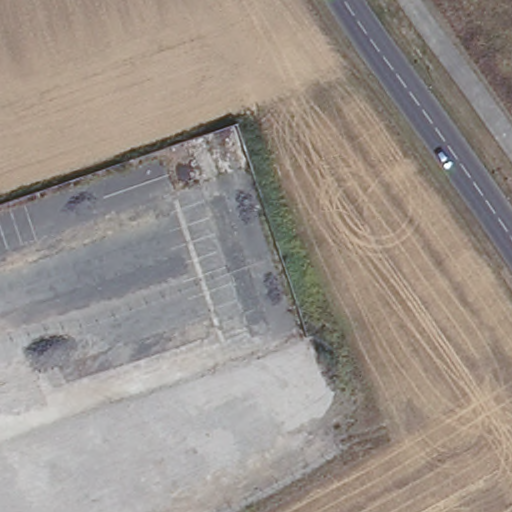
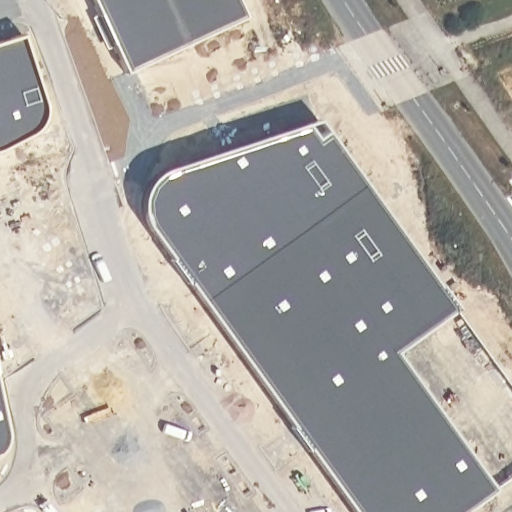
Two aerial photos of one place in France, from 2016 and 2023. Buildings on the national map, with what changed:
new [(124,72),(91,0),(237,0),(245,17),(124,72)]
new [(44,111),(42,118),(39,126),(32,135),(0,150),(0,40),(21,33),(43,104),(44,111)]
new [(453,307),(393,352),(490,488),(458,512),(352,512),(145,224),(141,214),(141,202),(144,191),(151,177),(160,172),(317,118),(453,307)]
demolished [(80,512),(0,512),(0,483),(127,417),(118,400),(126,396),(308,333),(325,385),(80,512)]
new [(3,430),(2,442),(0,445),(0,416),(3,430)]

